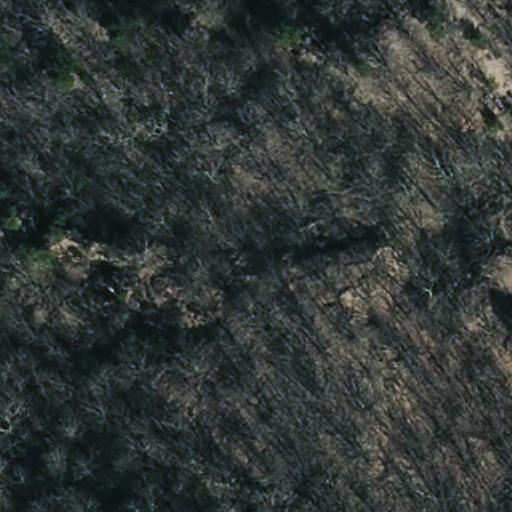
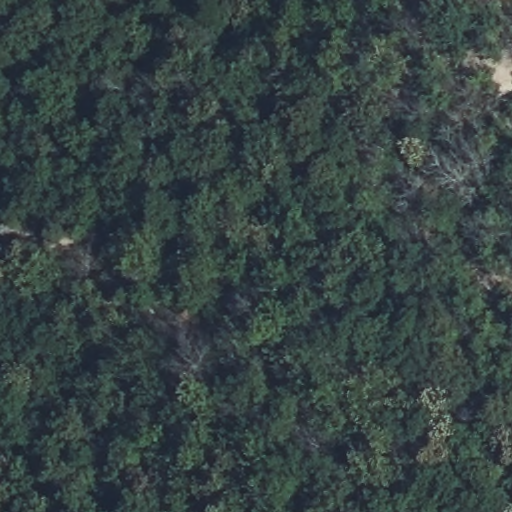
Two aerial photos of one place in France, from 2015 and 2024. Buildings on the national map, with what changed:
[]

